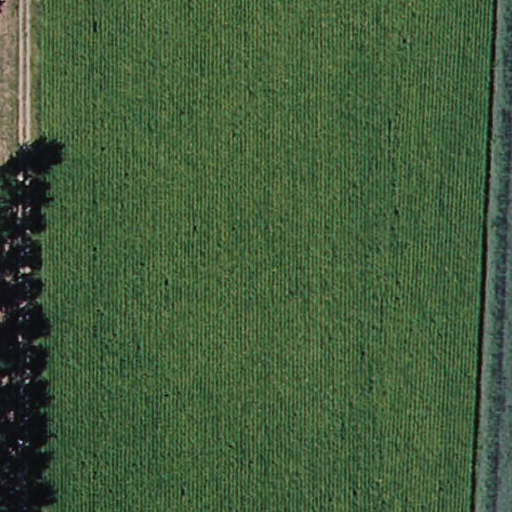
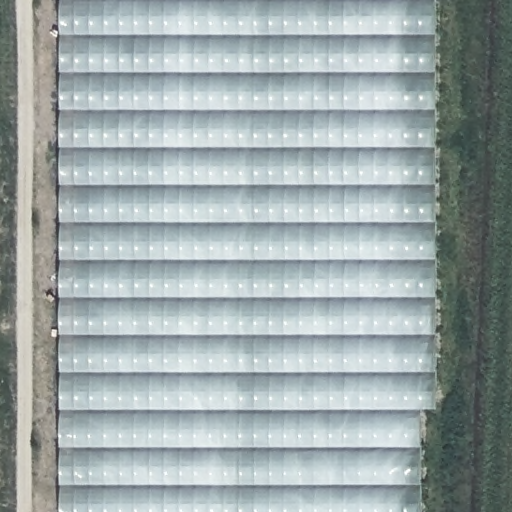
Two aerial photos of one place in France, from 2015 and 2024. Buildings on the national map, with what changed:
new [(436,0),(436,407),(422,407),(422,512),(60,512),(59,0),(436,0)]

